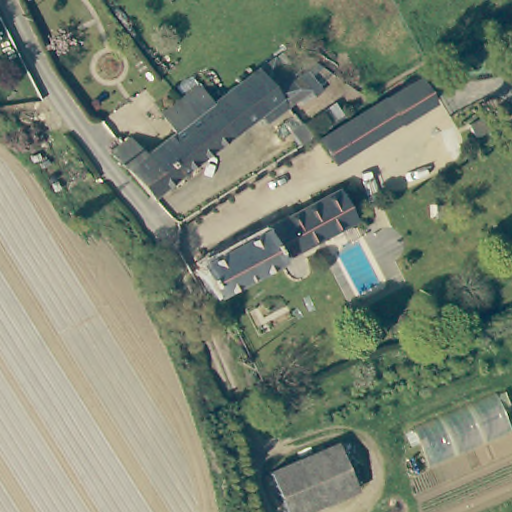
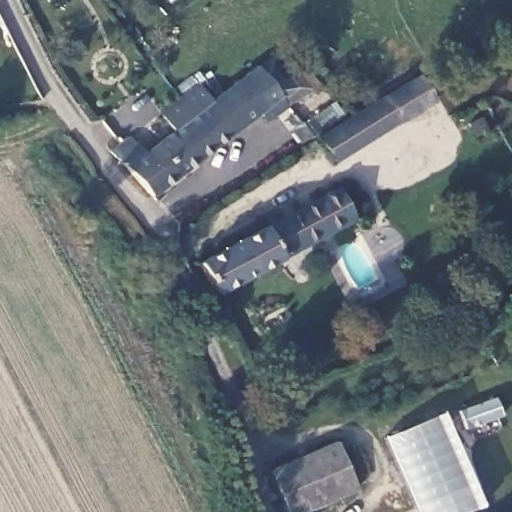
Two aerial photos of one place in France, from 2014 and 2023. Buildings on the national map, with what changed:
unchanged [(289,125),(280,114),(264,125),(256,115),(150,196),(107,149),(127,135),(141,155),(174,131),(160,110),(198,84),(211,101),(236,82),(272,54),(312,109),(289,125)]
unchanged [(333,164),(318,137),(420,75),(435,101),(333,164)]
unchanged [(300,252),(285,220),(337,193),(353,225),(300,252)]
unchanged [(199,263),(285,220),(300,252),(212,296),(199,263)]
new [(482,505),(464,512),(414,512),(382,437),(443,412),(482,505)]
unchanged [(271,471),(337,442),(358,492),(310,512),(286,512),(271,471)]

